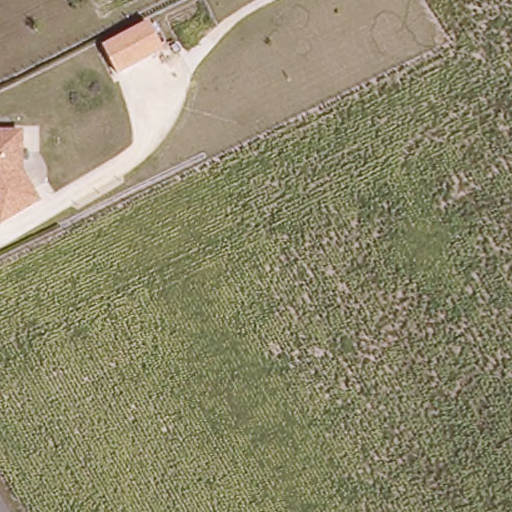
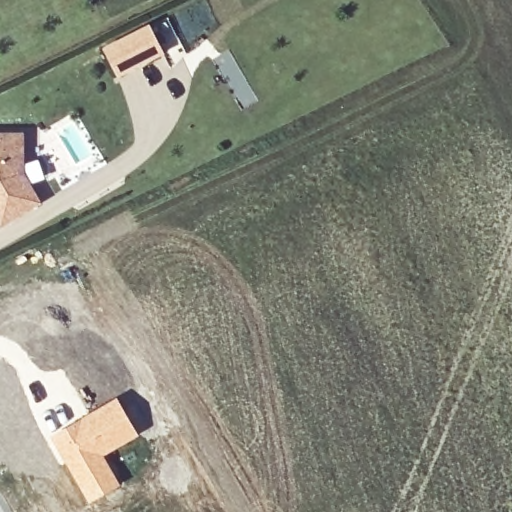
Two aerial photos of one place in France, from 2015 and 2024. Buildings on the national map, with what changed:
unchanged [(163,55),(119,76),(103,46),(148,24),(163,55)]
unchanged [(25,170),(42,201),(4,224),(0,217),(0,131),(24,131),(25,170)]
new [(117,396),(140,434),(105,456),(121,485),(89,502),(50,435),(117,396)]

